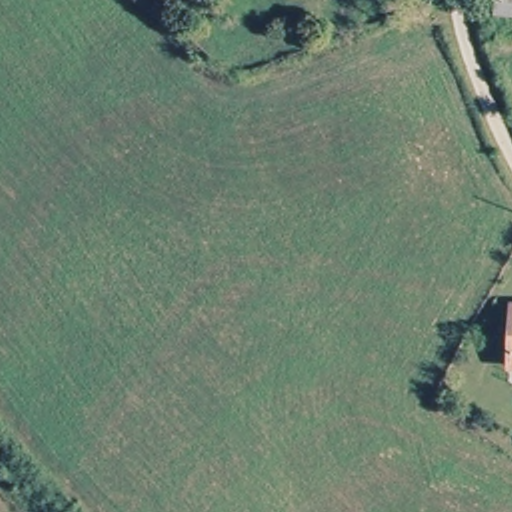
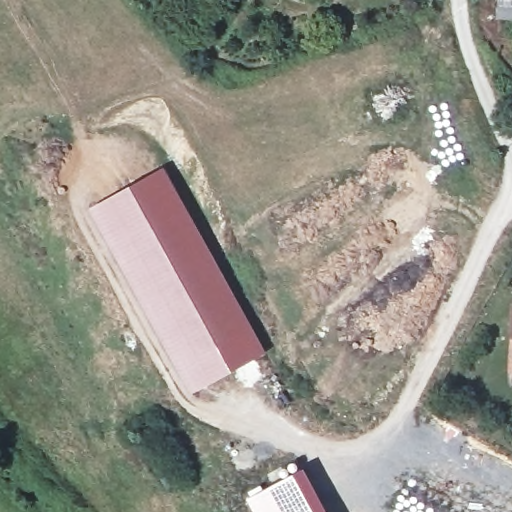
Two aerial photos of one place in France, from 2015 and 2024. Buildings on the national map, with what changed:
unchanged [(497,24),(498,0),(512,0),(512,25),(497,24)]
new [(189,392),(88,210),(162,168),(264,352),(189,392)]
unchanged [(509,373),(511,307),(512,307),(512,373),(509,373)]
new [(326,512),(252,512),(244,497),(302,467),(326,512)]

